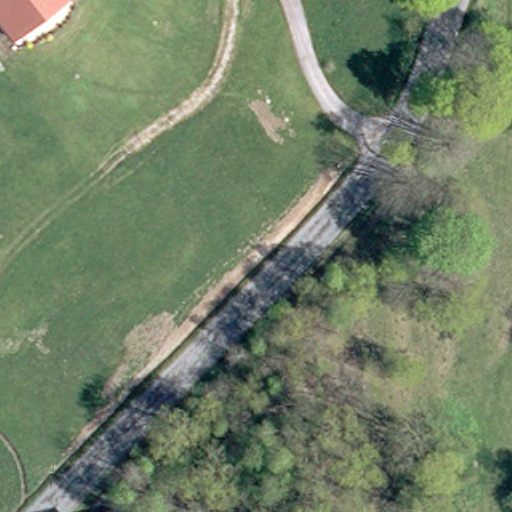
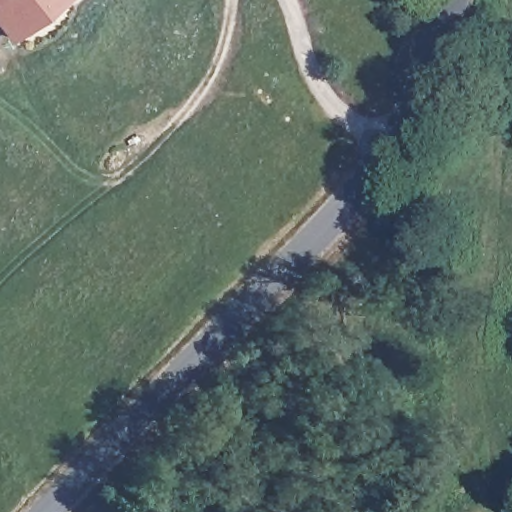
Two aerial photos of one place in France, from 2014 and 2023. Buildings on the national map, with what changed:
unchanged [(62,0),(10,42),(0,30),(0,0),(62,0)]

